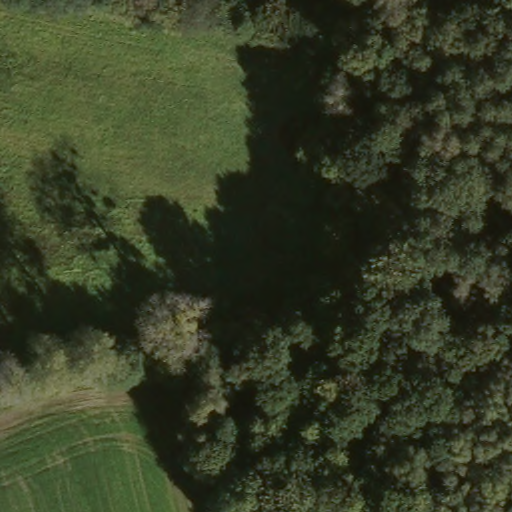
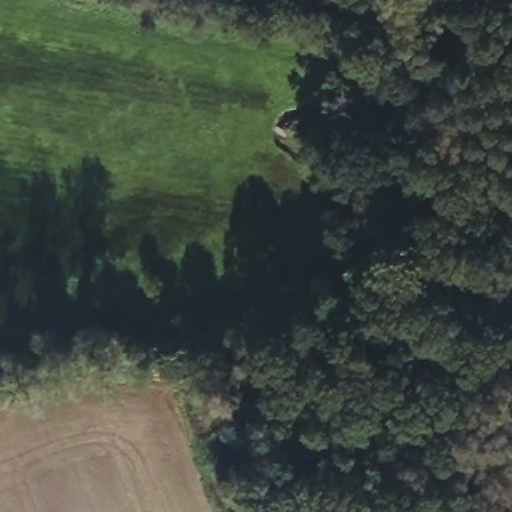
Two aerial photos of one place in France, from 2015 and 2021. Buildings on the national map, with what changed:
[]

